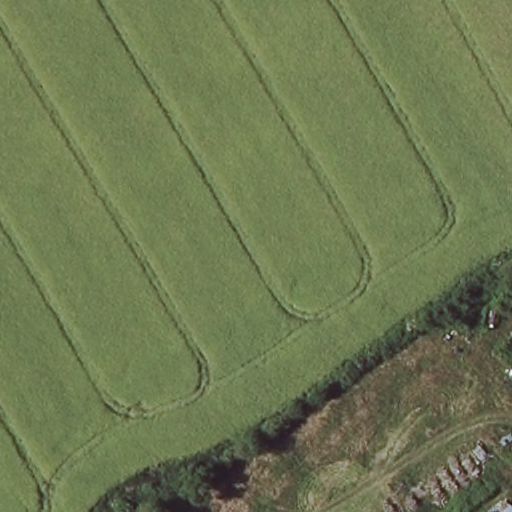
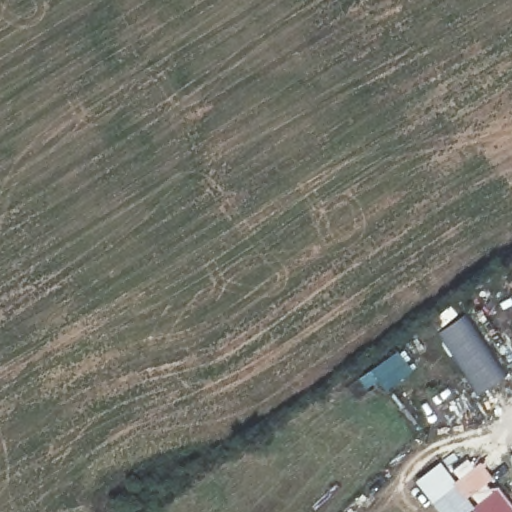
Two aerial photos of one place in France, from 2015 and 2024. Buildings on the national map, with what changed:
new [(466,314),(509,376),(479,397),(434,335),(466,314)]
new [(466,512),(439,512),(432,503),(415,481),(440,462),(455,482),(480,462),(492,478),(466,499),(472,507),(466,512)]
unchanged [(512,511),(512,512),(500,512),(508,506),(512,511)]

